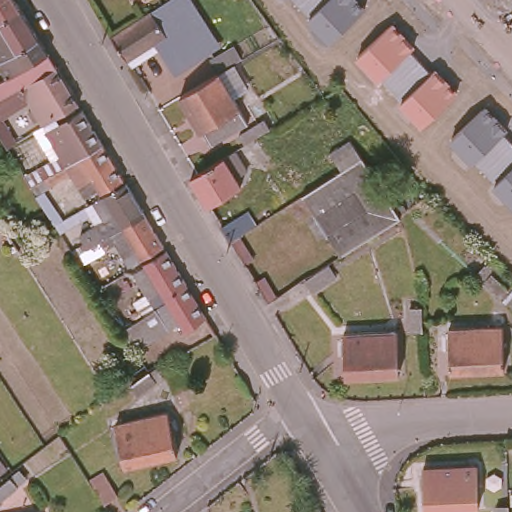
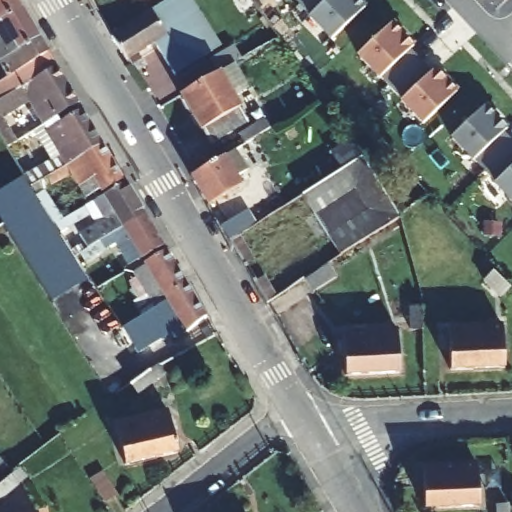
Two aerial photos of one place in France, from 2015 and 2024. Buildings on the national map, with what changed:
unchanged [(18,6),(0,17),(0,0),(15,0),(18,6)]
unchanged [(135,0),(147,0),(139,6),(135,0)]
unchanged [(328,45),(307,22),(314,17),(297,0),(359,0),(367,9),(328,45)]
unchanged [(0,106),(0,96),(7,92),(0,81),(0,78),(5,76),(0,67),(0,17),(18,6),(37,37),(46,52),(54,65),(77,102),(55,116),(52,111),(39,119),(19,86),(9,91),(17,104),(4,112),(0,106)]
unchanged [(202,74),(182,87),(161,55),(132,73),(116,47),(163,16),(202,74)]
unchanged [(400,104),(402,99),(384,80),(383,79),(379,82),(357,60),(393,22),(414,46),(411,49),(432,76),(437,71),(457,91),(422,127),(400,104)]
unchanged [(208,56),(232,42),(241,55),(217,69),(208,56)]
unchanged [(232,64),(245,86),(232,95),(249,124),(215,144),(206,130),(201,132),(179,94),(232,64)]
unchanged [(493,189),(496,185),(496,184),(479,163),(477,160),(472,165),(452,140),(486,106),(508,130),(504,134),(504,135),(512,143),(512,208),(493,189)]
unchanged [(60,155),(53,144),(57,140),(50,127),(80,108),(100,142),(29,185),(24,176),(60,155)]
unchanged [(0,137),(0,115),(16,140),(6,147),(0,137)]
unchanged [(197,172),(243,144),(238,136),(266,119),(271,127),(258,135),(265,147),(256,152),(254,149),(240,157),(247,170),(236,177),(241,185),(207,206),(190,176),(197,172)]
unchanged [(340,167),(330,150),(351,137),(362,154),(340,167)]
unchanged [(100,142),(121,176),(99,189),(97,187),(84,195),(69,172),(34,192),(32,190),(29,185),(100,142)]
unchanged [(362,155),(401,218),(337,252),(301,192),(362,155)]
new [(32,190),(34,192),(86,281),(51,302),(0,222),(0,191),(24,176),(29,185),(32,190)]
unchanged [(124,181),(143,212),(103,237),(98,240),(93,231),(116,217),(114,214),(105,219),(92,199),(124,181)]
unchanged [(229,240),(220,225),(242,211),(251,226),(229,240)]
unchanged [(123,248),(132,242),(126,233),(107,245),(103,237),(143,212),(162,244),(140,257),(132,262),(123,248)]
unchanged [(147,308),(142,300),(159,289),(157,285),(147,291),(134,270),(144,263),(142,262),(165,249),(185,283),(153,305),(147,308)]
unchanged [(510,283),(500,292),(485,276),(494,267),(510,283)]
unchanged [(153,305),(185,283),(204,314),(183,330),(177,319),(166,326),(153,305)]
unchanged [(130,350),(117,328),(147,308),(153,305),(166,326),(130,350)]
unchanged [(422,331),(409,331),(407,311),(421,310),(422,331)]
unchanged [(447,329),(502,326),(505,370),(449,372),(447,329)]
unchanged [(343,335),(397,332),(401,375),(346,377),(343,335)]
unchanged [(147,376),(154,385),(136,397),(130,387),(147,376)]
unchanged [(166,411),(175,451),(122,462),(114,422),(166,411)]
unchanged [(421,464),(477,461),(480,504),(424,507),(421,464)]
unchanged [(15,489),(0,501),(0,486),(7,480),(15,489)]
unchanged [(509,502),(510,512),(495,512),(495,502),(509,502)]

